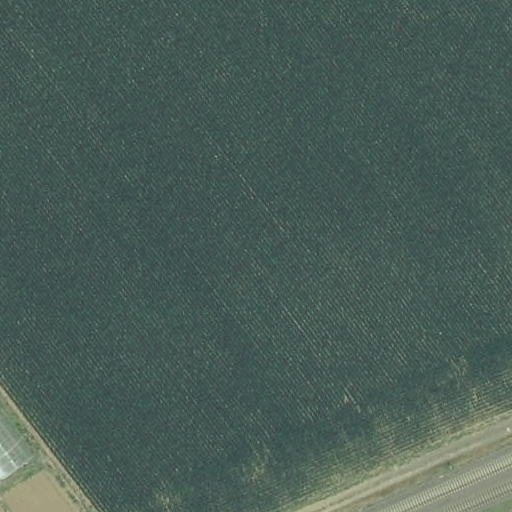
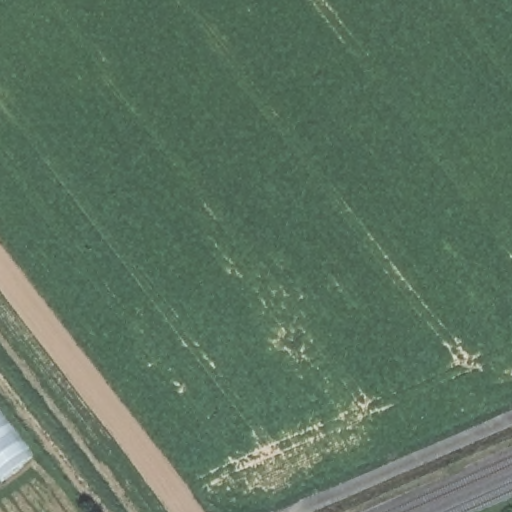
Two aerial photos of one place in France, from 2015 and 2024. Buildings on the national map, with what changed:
unchanged [(29,461),(5,479),(0,472),(0,421),(29,461)]

